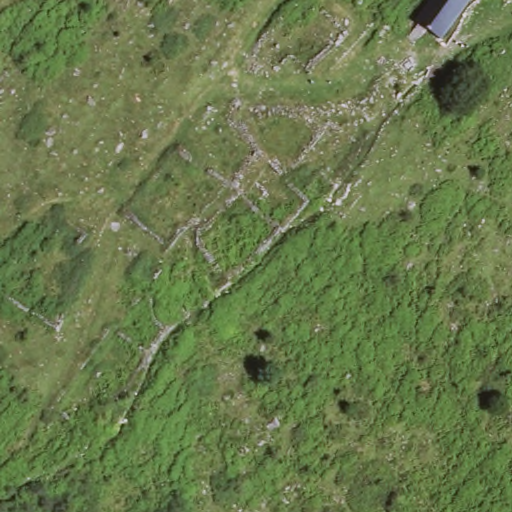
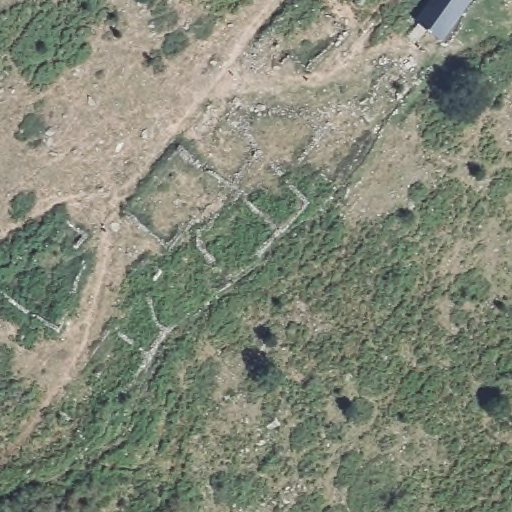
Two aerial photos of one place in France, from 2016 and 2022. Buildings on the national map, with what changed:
unchanged [(450,41),(415,20),(431,0),(480,0),(450,41)]

